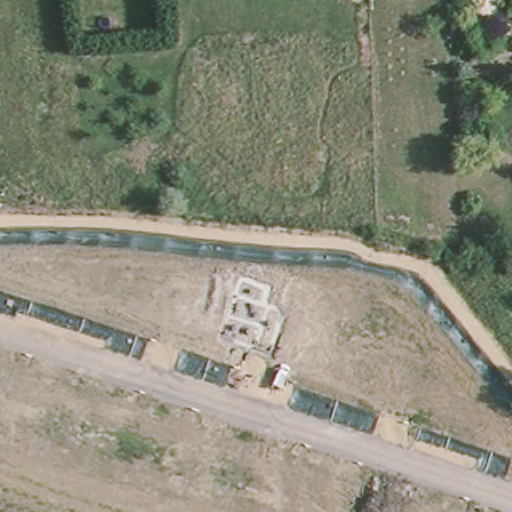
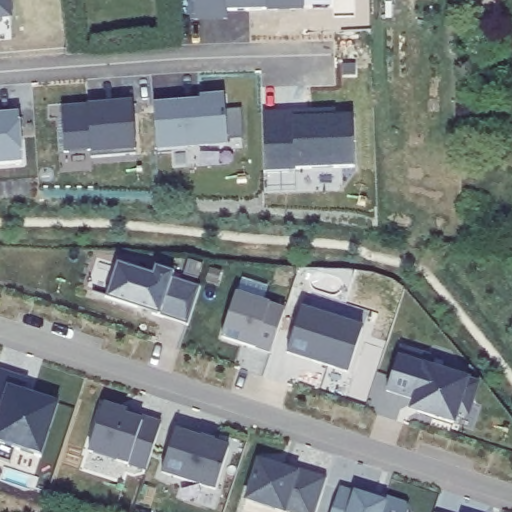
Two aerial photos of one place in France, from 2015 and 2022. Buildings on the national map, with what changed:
new [(0,20),(0,0),(7,0),(9,19),(0,20)]
new [(225,19),(193,20),(193,0),(302,0),(302,10),(244,11),(235,11),(225,11),(225,19)]
new [(302,10),(302,0),(331,0),(331,9),(302,10)]
new [(155,151),(152,108),(199,104),(199,100),(222,98),(225,144),(185,147),(185,150),(155,151)]
new [(60,109),(89,106),(134,104),(136,155),(91,159),(90,154),(64,156),(60,109)]
new [(260,116),(307,115),(307,121),(351,120),(352,169),(294,171),(294,173),(263,174),(260,116)]
new [(0,118),(17,116),(20,166),(0,168),(0,118)]
new [(159,317),(106,299),(117,266),(152,278),(155,269),(173,274),(171,280),(200,288),(187,326),(159,317)]
new [(222,338),(234,297),(240,278),(269,286),(264,304),(285,311),(272,355),(222,338)]
new [(300,310),(363,330),(349,376),(285,356),(300,310)]
new [(412,400),(385,392),(395,356),(397,345),(429,355),(426,366),(469,379),(479,383),(470,418),(459,414),(455,426),(408,413),(412,400)]
new [(11,389),(59,404),(42,459),(15,450),(10,463),(0,460),(0,369),(16,374),(11,389)]
new [(102,406),(129,414),(160,423),(145,471),(127,466),(88,453),(102,406)]
new [(174,431),(229,449),(216,492),(160,474),(174,431)]
new [(257,461),(297,473),(299,470),(327,478),(318,512),(277,512),(245,501),(257,461)]
new [(337,487),(355,491),(381,500),(382,496),(404,502),(410,510),(409,512),(330,512),(337,487)]

